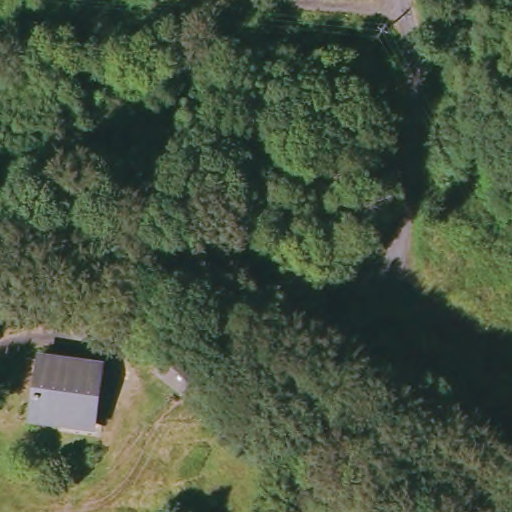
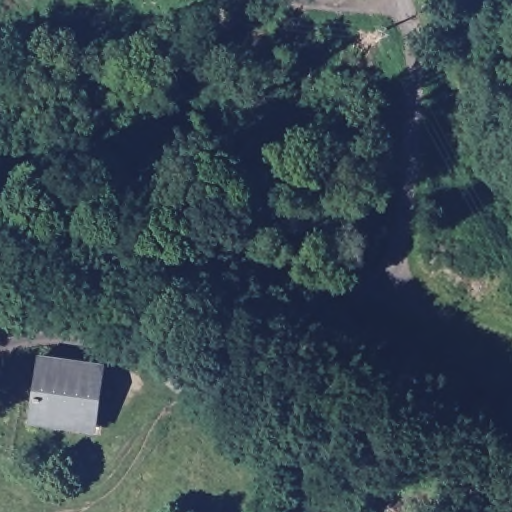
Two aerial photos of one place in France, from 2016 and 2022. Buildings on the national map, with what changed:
unchanged [(152,363),(161,350),(190,373),(180,384),(152,363)]
unchanged [(104,368),(97,429),(59,424),(58,429),(31,425),(40,359),(104,368)]

